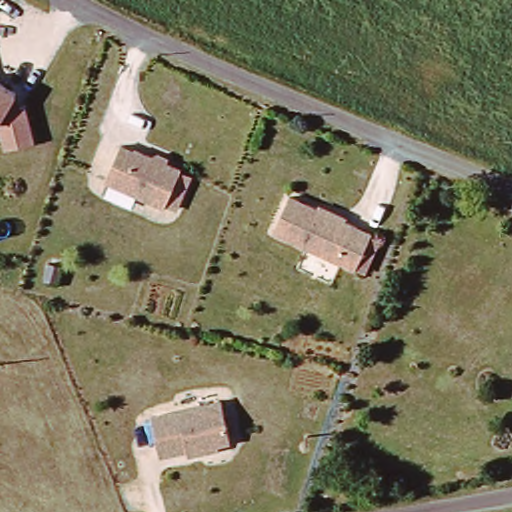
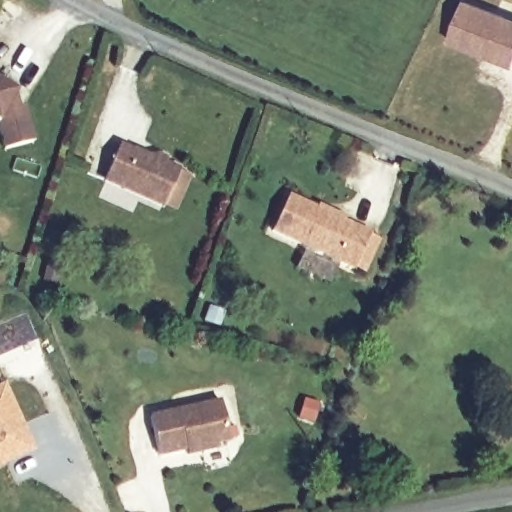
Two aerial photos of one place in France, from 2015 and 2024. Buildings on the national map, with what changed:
new [(448,43),(465,0),(512,19),(512,67),(448,43)]
unchanged [(0,151),(0,96),(2,97),(11,110),(20,146),(0,151)]
unchanged [(120,143),(152,153),(160,150),(170,155),(168,161),(182,167),(166,204),(105,179),(120,143)]
unchanged [(275,229),(292,194),(374,232),(358,268),(275,229)]
new [(39,337),(0,355),(0,323),(27,311),(39,337)]
new [(34,452),(0,467),(0,384),(5,382),(34,452)]
unchanged [(191,453),(163,458),(154,419),(225,402),(234,442),(222,444),(223,449),(205,454),(192,457),(191,453)]

